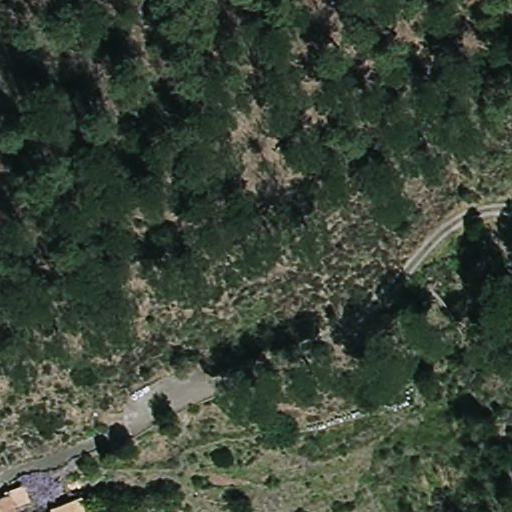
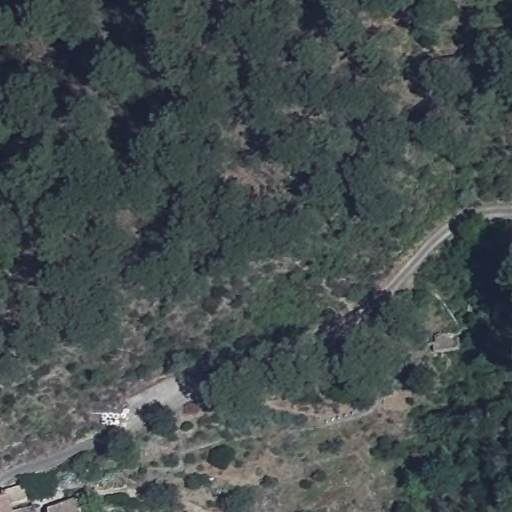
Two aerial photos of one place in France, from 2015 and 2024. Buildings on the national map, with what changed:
unchanged [(32,512),(0,512),(0,509),(28,500),(32,512)]
unchanged [(93,502),(95,512),(61,512),(61,506),(93,502)]

